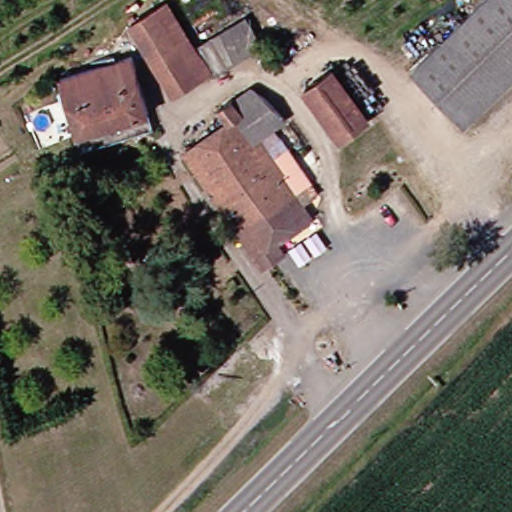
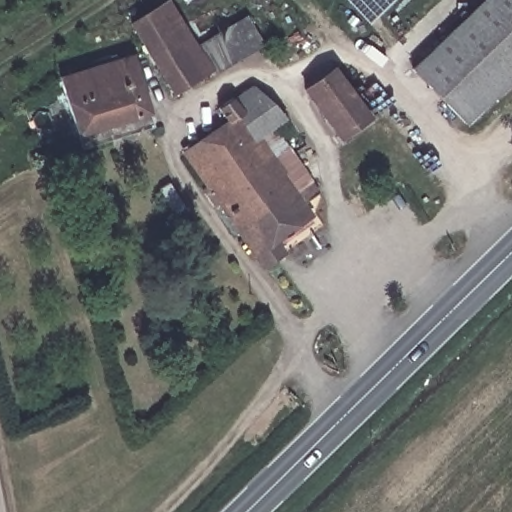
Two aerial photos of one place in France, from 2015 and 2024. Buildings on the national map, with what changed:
new [(347,0),(394,0),(370,24),(347,0)]
unchanged [(483,0),(512,0),(512,88),(474,125),(417,67),(483,0)]
unchanged [(140,37),(133,25),(169,2),(177,14),(199,43),(247,15),(266,45),(213,79),(180,100),(140,37)]
unchanged [(61,64),(132,48),(146,101),(81,122),(61,64)]
unchanged [(345,139),(310,91),(337,71),(373,120),(345,139)]
unchanged [(260,135),(238,96),(260,83),(283,120),(278,123),(260,135)]
unchanged [(187,151),(232,121),(223,107),(238,96),(260,135),(278,123),(306,171),(291,182),(297,190),(241,228),(187,151)]
unchanged [(146,101),(151,122),(86,141),(81,122),(146,101)]
unchanged [(267,264),(257,252),(241,228),(297,190),(313,179),(322,194),(308,205),(315,216),(280,239),(287,251),(267,264)]

